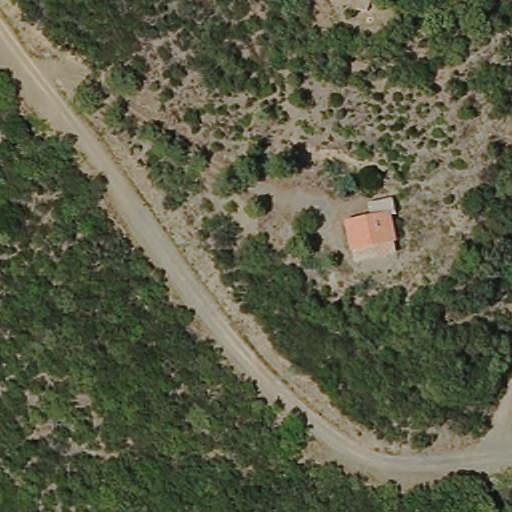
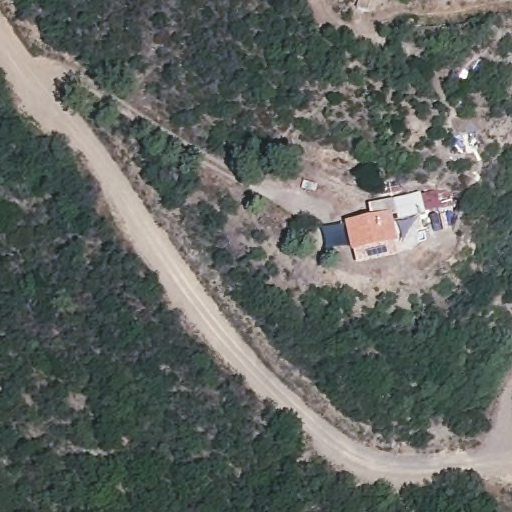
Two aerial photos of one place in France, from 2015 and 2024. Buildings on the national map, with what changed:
unchanged [(398,244),(355,257),(347,220),(392,211),(398,244)]

